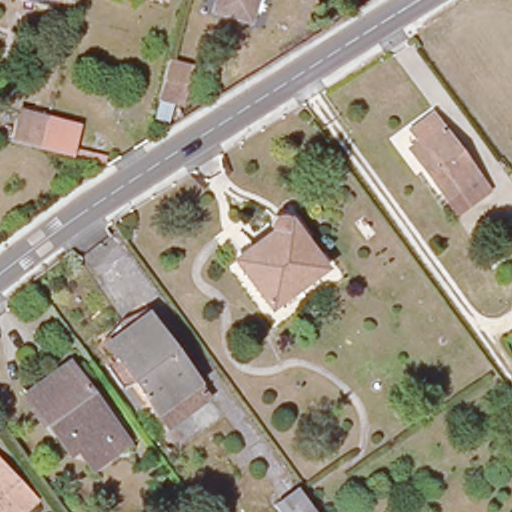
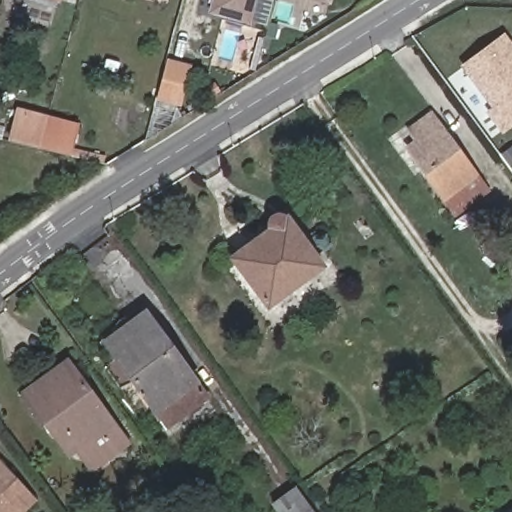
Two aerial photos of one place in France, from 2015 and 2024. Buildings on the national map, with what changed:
unchanged [(54,0),(56,0),(56,1),(54,0)]
unchanged [(214,0),(251,0),(246,18),(212,8),(214,0)]
new [(331,6),(311,0),(333,0),(331,6)]
new [(512,43),(512,127),(502,135),(485,113),(491,108),(460,65),(504,33),(512,43)]
unchanged [(187,70),(178,105),(161,100),(170,65),(187,70)]
unchanged [(61,150),(30,142),(12,138),(19,113),(37,117),(67,125),(61,150)]
unchanged [(455,216),(444,201),(405,148),(415,141),(407,130),(430,114),(476,178),(487,193),(455,216)]
unchanged [(272,237),(271,234),(269,231),(270,228),(272,225),(273,222),(276,220),(279,219),(282,220),(286,221),(288,223),(292,226),(293,229),(305,243),(315,257),(324,270),(294,293),(271,310),(237,264),(272,237)]
unchanged [(150,313),(212,397),(172,427),(140,383),(126,386),(114,372),(108,364),(119,356),(110,343),(150,313)]
unchanged [(102,428),(78,447),(56,417),(46,424),(18,389),(64,355),(132,444),(120,453),(102,428)]
unchanged [(87,478),(46,424),(56,417),(78,447),(102,428),(120,453),(87,478)]
unchanged [(199,464),(215,485),(195,500),(179,479),(199,464)]
unchanged [(32,505),(24,512),(0,512),(0,469),(32,505)]
unchanged [(311,512),(290,512),(304,502),(311,512)]

